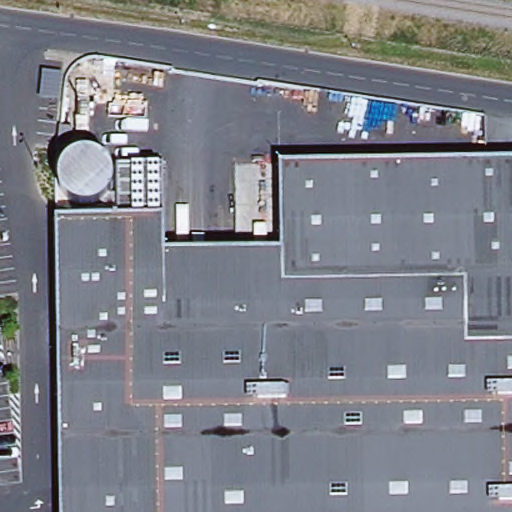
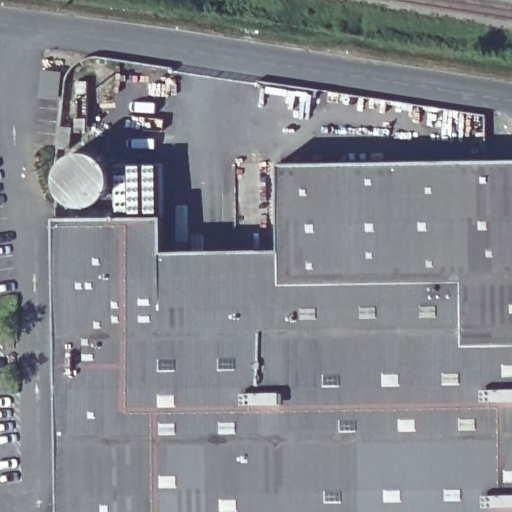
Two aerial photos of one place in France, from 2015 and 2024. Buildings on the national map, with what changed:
unchanged [(60,97),(41,95),(44,71),(62,73),(60,97)]
unchanged [(71,154),(59,152),(61,131),(74,132),(71,154)]
unchanged [(114,189),(112,194),(109,201),(102,207),(93,211),(84,212),(73,208),(65,201),(60,192),(60,183),(61,173),(69,163),(77,158),(85,157),(95,158),(102,161),(110,169),(114,180),(114,184),(114,189)]
unchanged [(53,328),(53,319),(58,319),(56,222),(120,221),(120,170),(164,169),(166,302),(167,302),(282,300),(281,245),(280,167),(512,163),(512,512),(61,512),(59,328),(53,328)]
unchanged [(166,247),(281,245),(282,300),(167,302),(166,247)]

